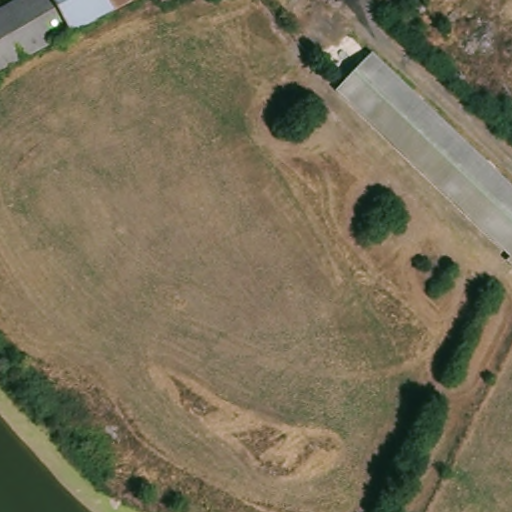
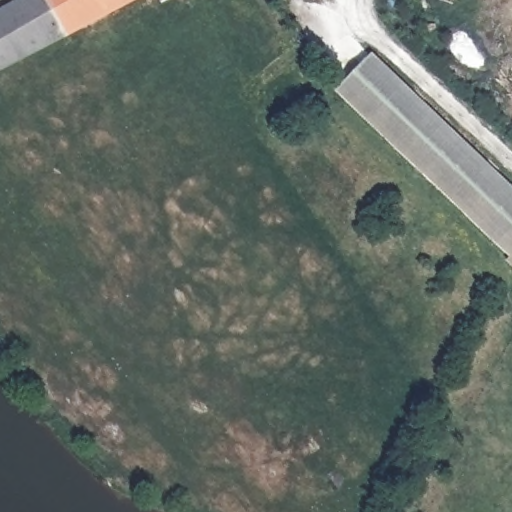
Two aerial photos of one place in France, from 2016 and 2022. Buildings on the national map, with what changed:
unchanged [(70,34),(0,70),(0,9),(16,0),(135,0),(70,34)]
unchanged [(161,3),(159,0),(166,0),(161,3)]
unchanged [(338,89),(369,57),(512,194),(512,256),(338,89)]

